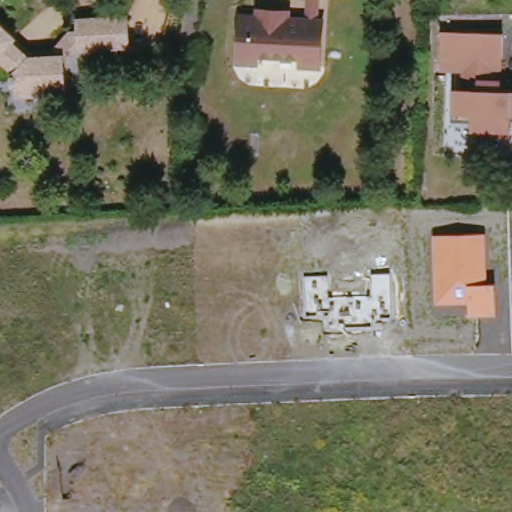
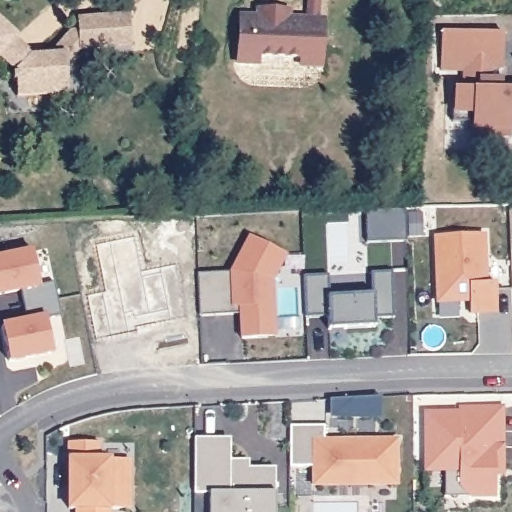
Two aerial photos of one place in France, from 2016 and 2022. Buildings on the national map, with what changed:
unchanged [(307,71),(307,64),(263,60),(263,69),(243,68),(246,21),(264,23),(265,15),(294,17),(293,24),(313,25),(315,0),(323,0),(322,25),(328,26),(325,72),(307,71)]
unchanged [(16,71),(0,57),(0,22),(17,38),(13,42),(29,56),(57,54),(57,48),(70,33),(78,32),(78,25),(83,19),(130,16),(131,46),(78,50),(67,64),(68,94),(17,96),(16,71)]
unchanged [(506,71),(497,70),(496,83),(505,83),(505,90),(512,91),(512,134),(475,133),(475,123),(455,122),(457,89),(468,89),(470,69),(444,69),(445,31),(507,34),(506,71)]
new [(405,207),(406,242),(367,244),(365,208),(405,207)]
unchanged [(487,284),(495,284),(496,315),(467,315),(467,302),(435,304),(432,235),(485,234),(487,284)]
new [(232,273),(250,237),(285,254),(268,289),(269,305),(273,305),(275,338),(242,339),(241,307),(241,314),(219,315),(200,316),(198,274),(222,273),(232,273)]
new [(10,363),(3,325),(27,321),(22,293),(0,297),(0,256),(33,249),(40,285),(53,283),(60,315),(46,317),(53,357),(10,363)]
unchanged [(325,275),(325,297),(372,296),(371,274),(390,274),(392,316),(373,317),(373,327),(330,327),(330,315),(303,315),(302,277),(325,275)]
new [(445,464),(425,464),(425,414),(458,414),(458,409),(502,409),(502,448),(495,449),(496,498),(470,498),(445,498),(445,464)]
new [(324,427),(324,442),(396,443),(395,487),(313,486),(313,468),(290,468),(290,427),(324,427)]
new [(193,495),(194,442),(230,442),(230,461),(249,461),(249,472),(275,472),(275,512),(193,512),(193,495)]
new [(109,510),(109,512),(69,512),(70,444),(98,444),(98,461),(129,462),(129,491),(128,510),(109,510)]
new [(502,449),(502,478),(495,478),(495,449),(502,449)]

